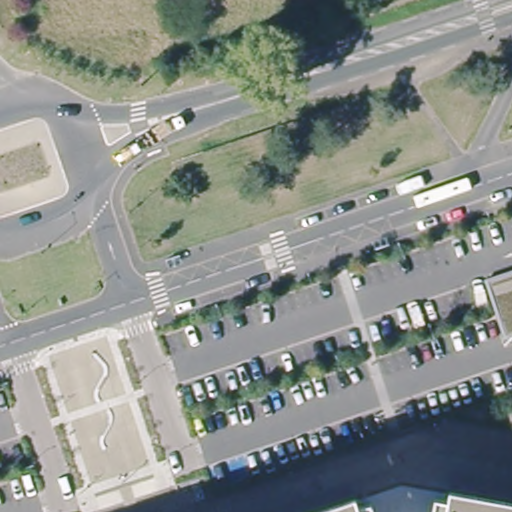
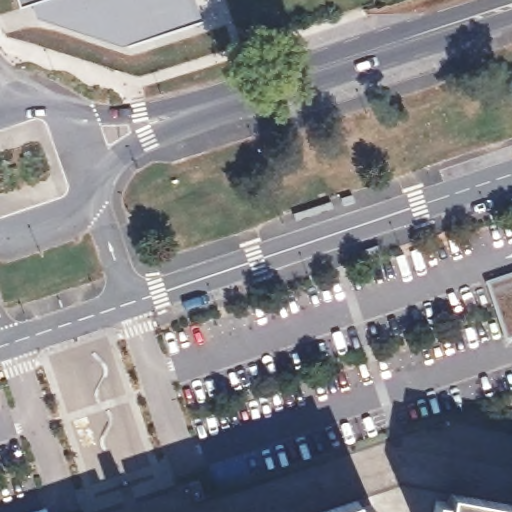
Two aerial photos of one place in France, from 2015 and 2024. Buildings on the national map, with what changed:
new [(124,47),(37,18),(34,2),(20,7),(18,0),(195,0),(200,21),(124,47)]
unchanged [(512,273),(512,339),(505,341),(485,282),(512,273)]
unchanged [(436,494),(448,496),(450,491),(512,503),(512,512),(433,512),(436,494)]
unchanged [(360,512),(332,512),(357,503),(360,512)]
unchanged [(371,511),(371,512),(369,512),(371,511)]

